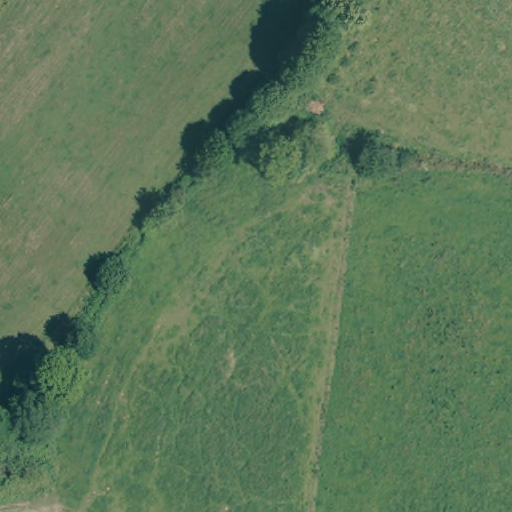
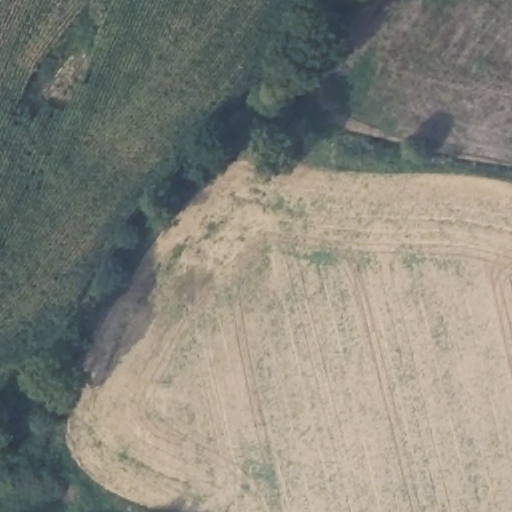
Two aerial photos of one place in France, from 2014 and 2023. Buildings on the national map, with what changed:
[]

